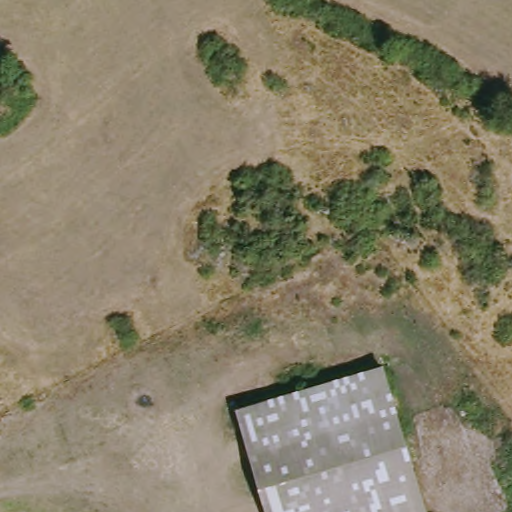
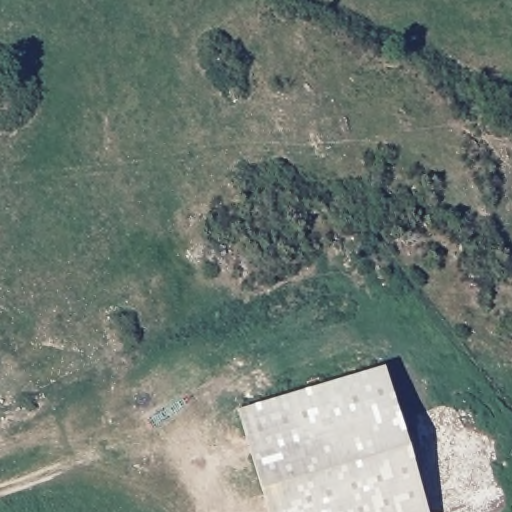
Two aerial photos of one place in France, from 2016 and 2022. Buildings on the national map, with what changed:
unchanged [(421,473),(296,512),(275,512),(245,416),(388,367),(421,473)]
unchanged [(433,512),(296,512),(421,473),(433,512)]

